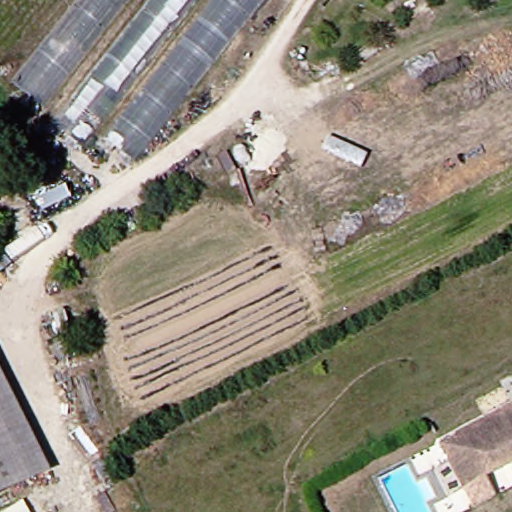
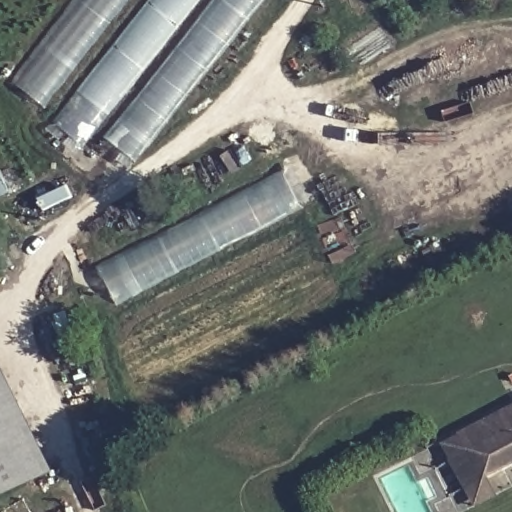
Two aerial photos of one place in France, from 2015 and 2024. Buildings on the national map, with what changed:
unchanged [(92,0),(137,0),(52,107),(25,85),(92,0)]
unchanged [(153,0),(202,0),(84,152),(52,125),(153,0)]
unchanged [(104,136),(214,0),(262,0),(134,160),(104,136)]
new [(117,305),(97,264),(283,170),(301,209),(117,305)]
new [(52,316),(65,311),(81,354),(69,359),(52,316)]
unchanged [(0,494),(0,395),(39,476),(0,494)]
unchanged [(487,474),(464,428),(512,404),(512,462),(487,474)]
unchanged [(487,474),(454,491),(440,463),(455,456),(445,438),(464,428),(487,474)]
unchanged [(39,512),(11,512),(32,499),(39,512)]

